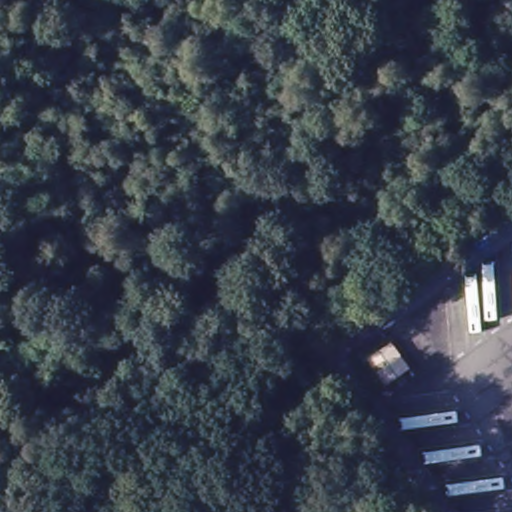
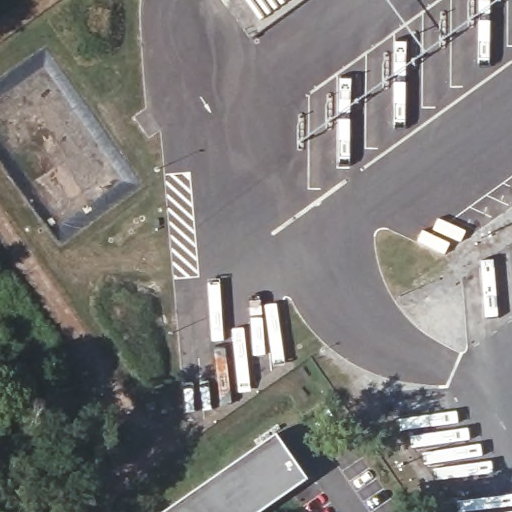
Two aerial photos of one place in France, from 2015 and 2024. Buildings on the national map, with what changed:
demolished [(384,386),(365,360),(391,342),(409,368),(384,386)]
new [(277,435),(309,479),(262,512),(165,512),(277,435)]

